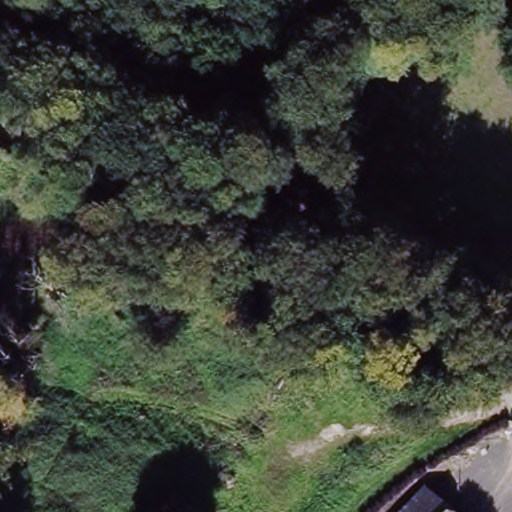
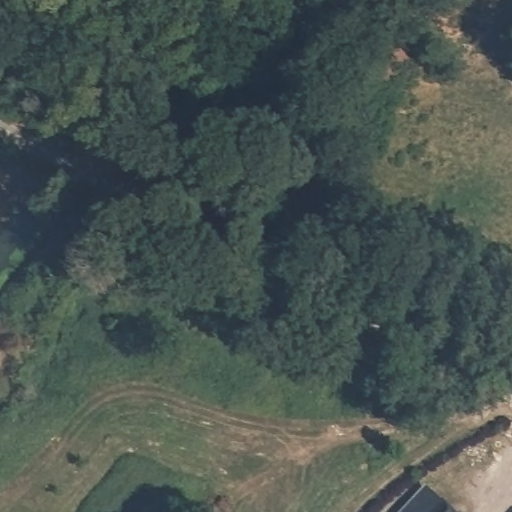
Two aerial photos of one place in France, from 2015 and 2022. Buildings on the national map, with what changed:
unchanged [(446,512),(403,512),(421,491),(446,512)]

